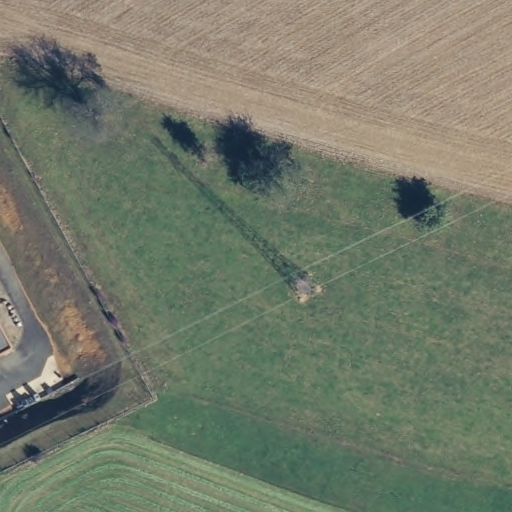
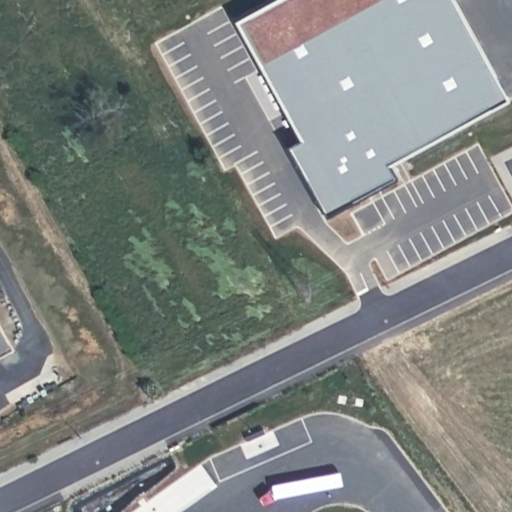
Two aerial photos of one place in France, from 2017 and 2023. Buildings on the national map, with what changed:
new [(269,0),(456,0),(510,98),(392,163),(398,176),(327,215),(287,144),(301,137),(235,18),(269,0)]
unchanged [(0,359),(0,338),(8,354),(0,359)]

